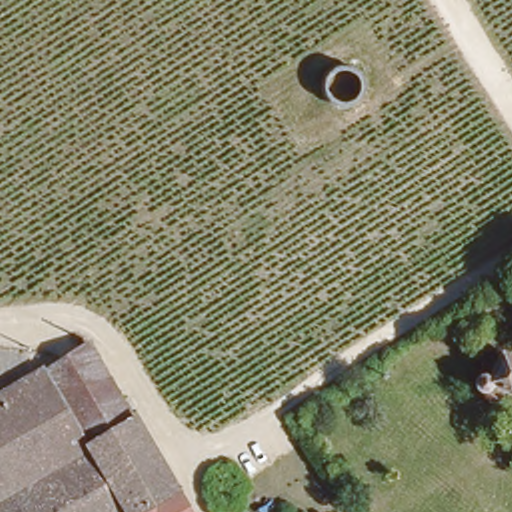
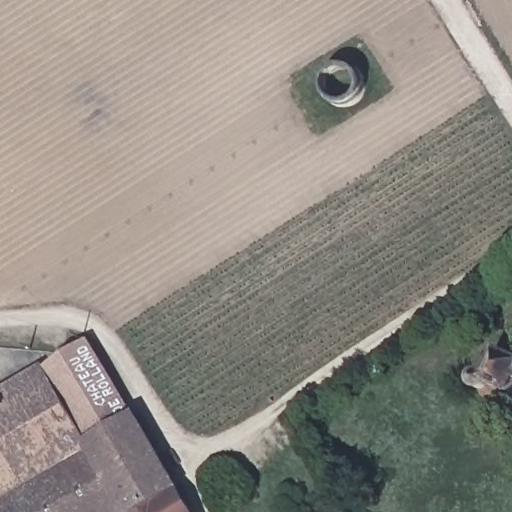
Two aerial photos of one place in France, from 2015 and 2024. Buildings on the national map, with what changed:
unchanged [(135,512),(135,510),(132,512),(0,512),(0,387),(43,360),(47,362),(90,337),(198,512),(135,512)]
unchanged [(512,353),(512,390),(503,386),(497,401),(482,394),(478,389),(478,385),(481,381),(485,378),(493,378),(506,350),(512,353)]
unchanged [(310,512),(312,508),(316,512),(310,512)]

